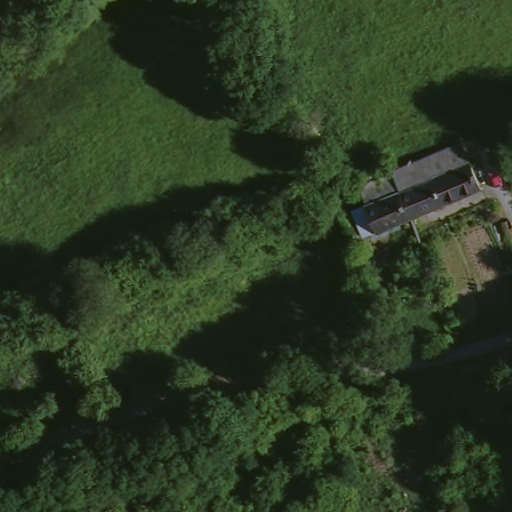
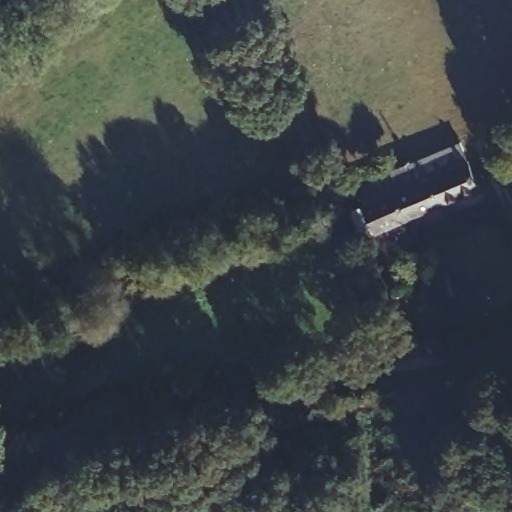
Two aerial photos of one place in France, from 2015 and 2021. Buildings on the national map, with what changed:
unchanged [(462,141),(480,190),(409,217),(392,176),(389,171),(462,141)]
unchanged [(409,217),(377,229),(376,226),(361,232),(352,210),(367,204),(365,201),(369,200),(364,186),(392,176),(409,217)]

